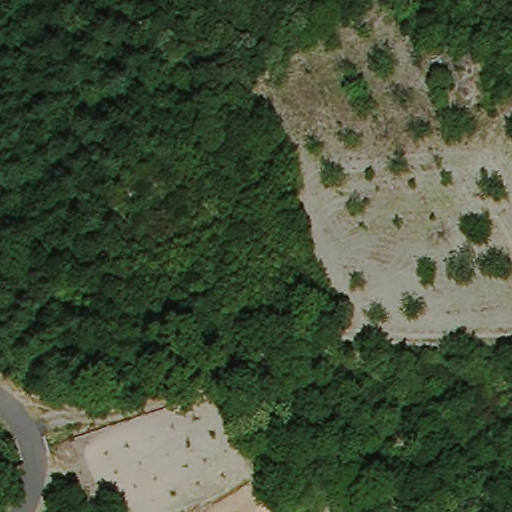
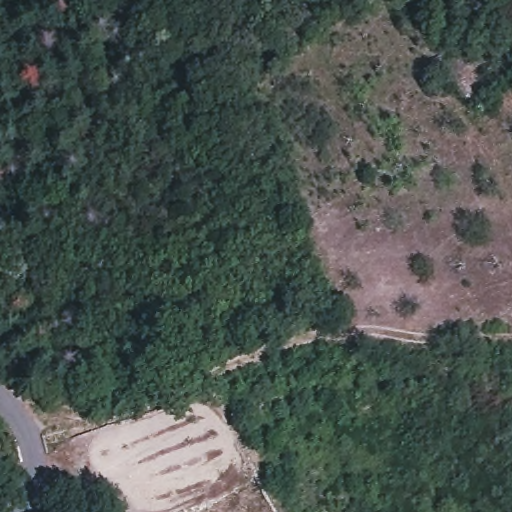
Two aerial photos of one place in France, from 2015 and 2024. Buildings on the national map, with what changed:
[]

